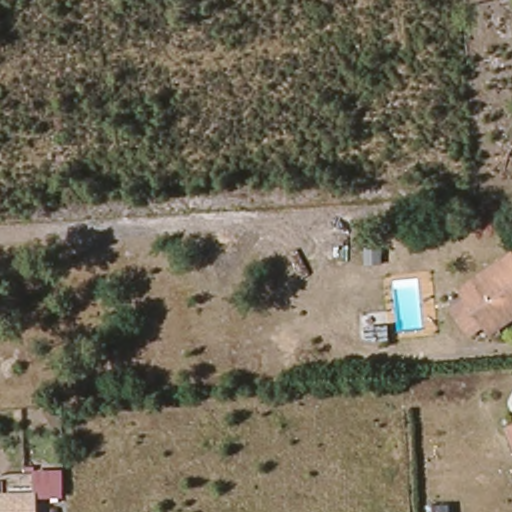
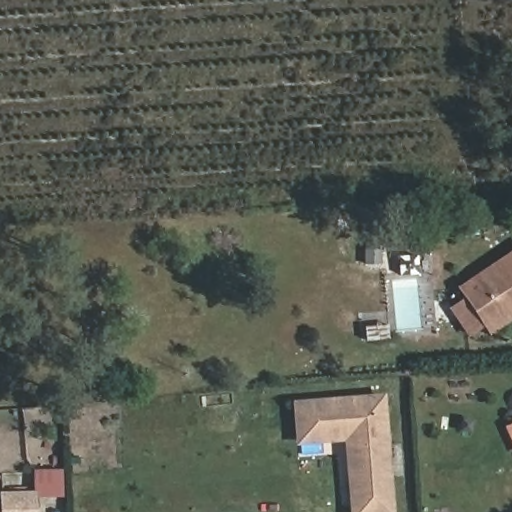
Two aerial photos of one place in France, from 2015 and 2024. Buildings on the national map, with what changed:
unchanged [(495,333),(489,324),(463,289),(512,254),(512,320),(495,333)]
new [(344,441),(295,445),(292,401),(384,394),(394,512),(349,512),(344,441)]
unchanged [(34,469),(61,467),(64,496),(37,496),(38,512),(0,512),(0,489),(35,488),(34,469)]

